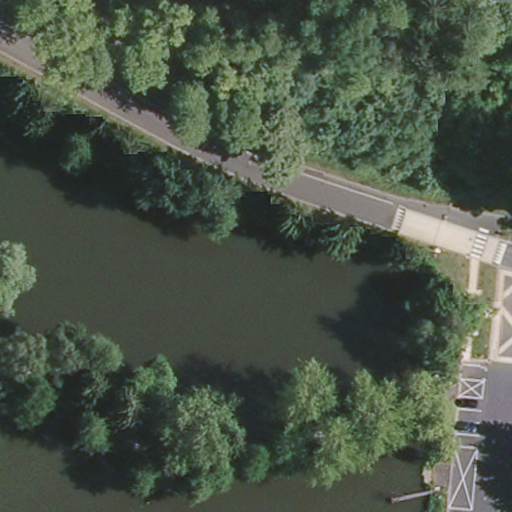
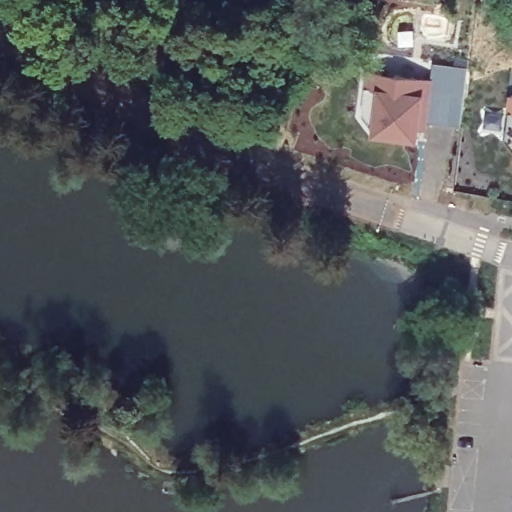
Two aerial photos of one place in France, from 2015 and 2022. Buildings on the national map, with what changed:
new [(430,81),(433,66),(466,70),(460,130),(425,126),(425,132),(416,131),(415,147),(369,140),(369,132),(373,95),(362,90),(363,71),(430,81)]
new [(512,117),(506,115),(507,98),(512,99),(512,117)]
new [(512,158),(512,166),(511,165),(512,158)]

